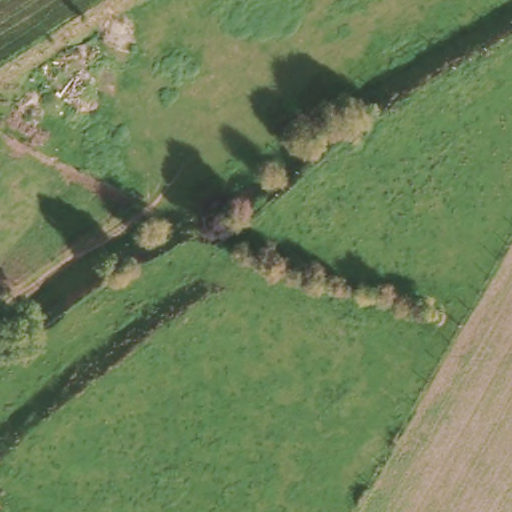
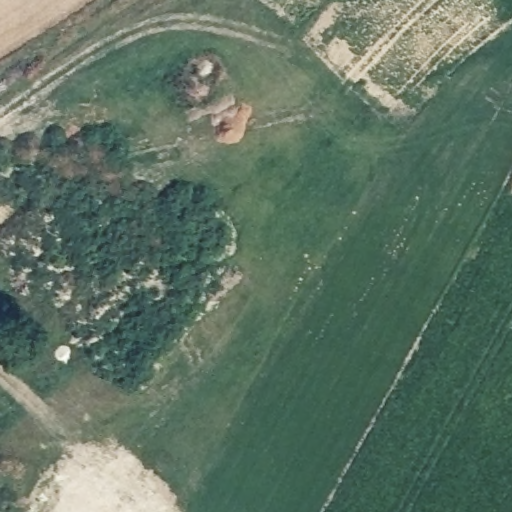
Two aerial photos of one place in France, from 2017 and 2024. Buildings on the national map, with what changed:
[]

